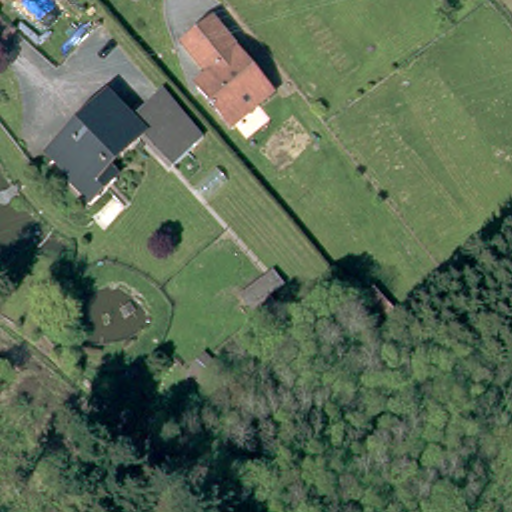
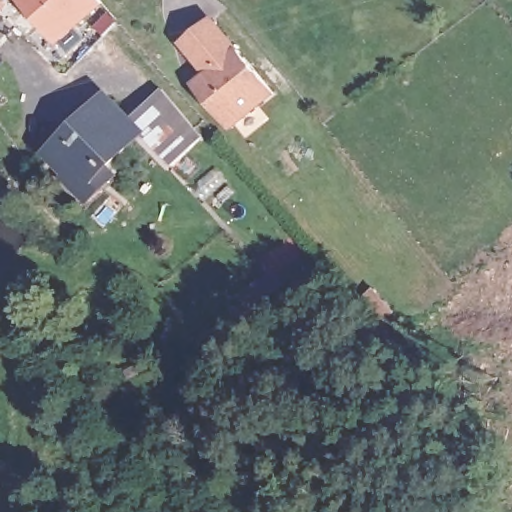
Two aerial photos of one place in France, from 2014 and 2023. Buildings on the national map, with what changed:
unchanged [(0,0),(3,0),(0,2),(0,0)]
new [(55,47),(17,0),(100,0),(104,5),(55,47)]
unchanged [(207,84),(199,74),(202,71),(177,39),(209,15),(234,48),(237,47),(270,90),(227,123),(200,90),(207,84)]
unchanged [(134,112),(165,92),(207,139),(175,170),(146,141),(103,176),(110,186),(90,205),(39,157),(110,92),(134,112)]

